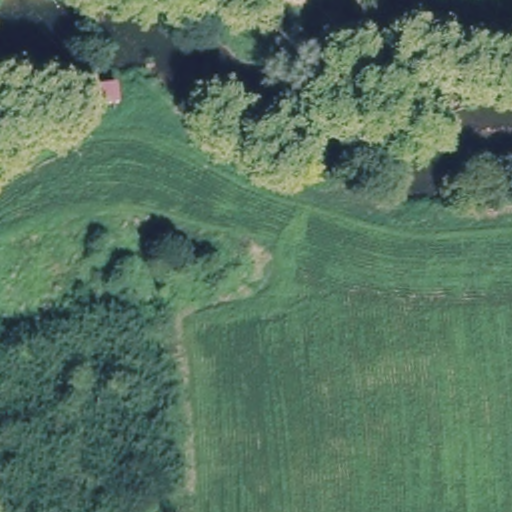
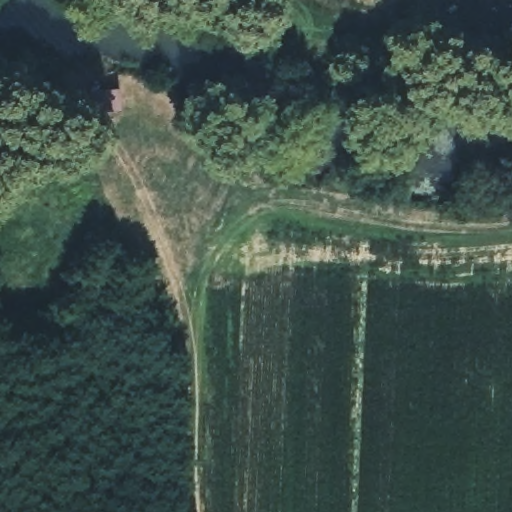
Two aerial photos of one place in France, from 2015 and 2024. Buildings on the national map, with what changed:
unchanged [(93,85),(121,81),(124,103),(96,104),(93,85)]

